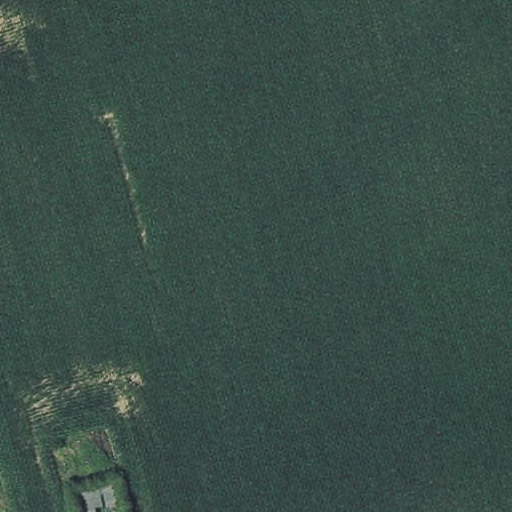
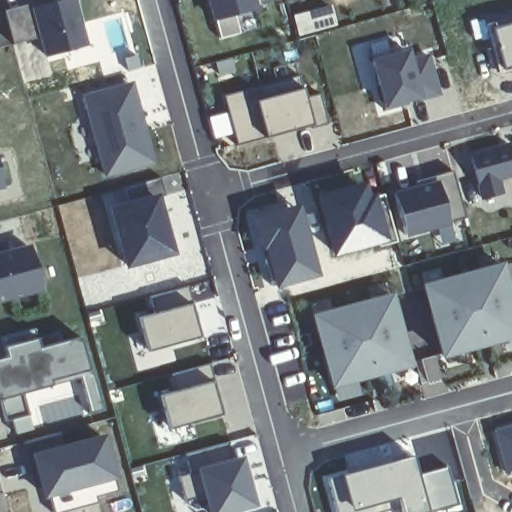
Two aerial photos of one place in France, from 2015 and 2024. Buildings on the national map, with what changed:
new [(74,0),(87,46),(44,58),(38,38),(14,44),(5,11),(42,0),(47,0),(48,3),(58,0),(74,0)]
new [(258,10),(235,15),(239,34),(222,38),(216,21),(211,21),(205,0),(273,0),(257,4),(258,10)]
new [(332,4),(337,29),(299,38),(295,16),(332,4)]
new [(500,69),(491,31),(512,26),(512,66),(500,69)]
new [(409,51),(412,59),(431,55),(443,98),(386,112),(373,60),(409,51)]
new [(330,125),(314,129),(314,126),(287,133),(284,126),(276,128),(278,136),(239,146),(238,145),(240,144),(227,98),(300,78),(299,76),(301,76),(307,98),(322,94),(330,125)]
new [(155,163),(105,176),(83,96),(135,83),(155,163)]
new [(502,195),(479,200),(468,154),(510,143),(512,152),(512,176),(499,180),(502,195)]
new [(465,218),(448,223),(404,235),(393,194),(415,187),(414,181),(452,171),(465,218)]
new [(3,190),(0,190),(0,177),(3,190)]
new [(171,253),(129,265),(114,211),(128,207),(123,189),(162,178),(167,197),(157,199),(158,202),(161,201),(166,219),(162,220),(162,222),(160,222),(163,232),(165,232),(171,253)]
new [(370,181),(373,194),(376,193),(390,241),(332,255),(315,193),(370,181)]
new [(275,259),(271,244),(266,246),(259,220),(282,214),(285,223),(301,219),(316,275),(274,286),(267,261),(275,259)]
new [(30,245),(42,292),(0,303),(0,252),(30,245)]
new [(512,295),(512,339),(441,358),(421,284),(503,261),(512,295)]
new [(392,292),(412,366),(331,388),(310,314),(392,292)]
new [(191,302),(200,337),(146,351),(137,316),(191,302)]
new [(4,356),(2,346),(36,337),(39,347),(78,335),(89,371),(18,395),(23,412),(3,417),(0,409),(0,357),(4,356)]
new [(427,383),(421,359),(438,355),(448,392),(423,399),(420,385),(427,383)]
new [(167,374),(208,363),(212,379),(220,413),(168,428),(158,394),(172,390),(167,374)]
new [(491,429),(512,423),(512,474),(505,476),(491,429)]
new [(102,433),(114,479),(42,499),(27,450),(102,433)]
new [(187,471),(188,470),(183,454),(231,441),(236,455),(241,454),(255,507),(233,512),(206,512),(198,489),(189,490),(185,478),(188,476),(187,471)]
new [(409,454),(416,475),(447,466),(459,503),(429,512),(399,512),(395,501),(388,503),(389,507),(372,512),(332,512),(321,476),(409,454)]

